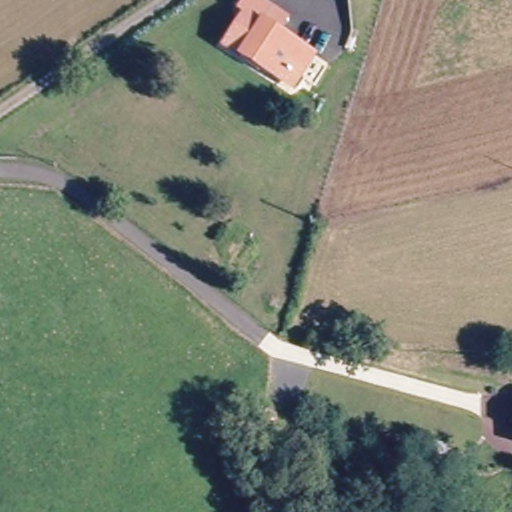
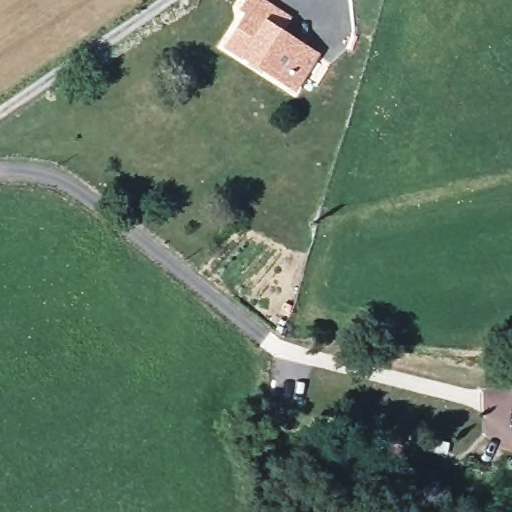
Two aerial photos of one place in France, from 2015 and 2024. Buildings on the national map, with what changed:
unchanged [(291,98),(275,87),(217,47),(237,16),(229,10),(235,0),(242,0),(280,25),(272,38),(297,55),(312,66),(291,98)]

